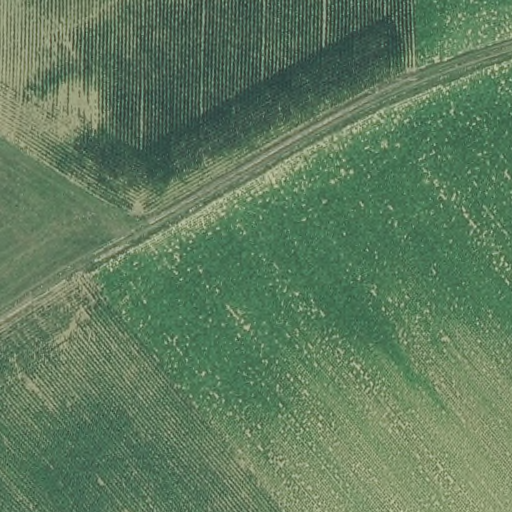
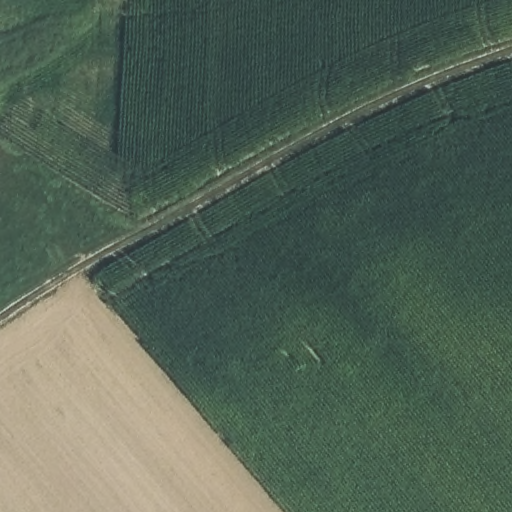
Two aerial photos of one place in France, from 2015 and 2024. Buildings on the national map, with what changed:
[]

